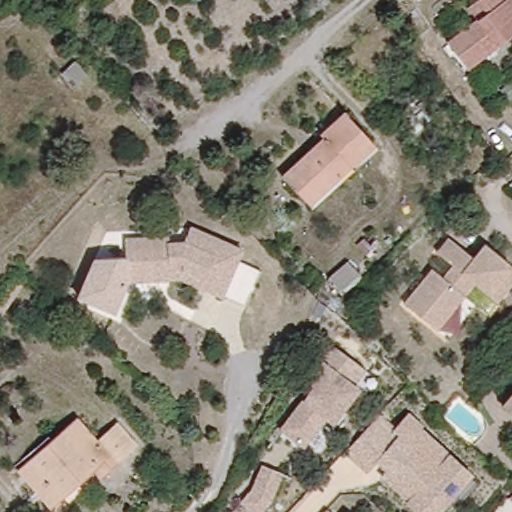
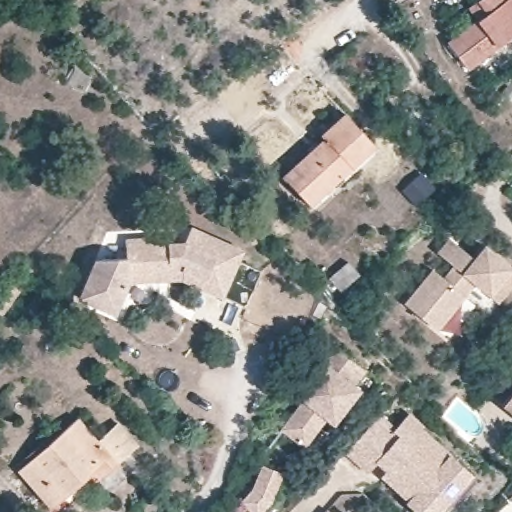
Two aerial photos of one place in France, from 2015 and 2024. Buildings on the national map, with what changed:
unchanged [(448,48),(478,24),(468,13),(484,0),(512,0),(512,41),(468,74),(448,48)]
unchanged [(73,88),(61,74),(76,61),(88,75),(73,88)]
unchanged [(309,205),(283,177),(324,138),(321,134),(344,113),(374,144),(309,205)]
unchanged [(181,279),(169,280),(126,282),(125,240),(169,238),(169,244),(183,243),(190,227),(242,250),(225,289),(221,297),(181,279)]
unchanged [(475,283),(437,330),(404,304),(432,269),(443,278),(453,266),(437,253),(449,238),(474,258),(484,245),(512,268),(512,284),(509,288),(498,302),(475,283)]
unchanged [(126,282),(115,314),(77,299),(93,259),(125,257),(126,282)]
unchanged [(340,291),(329,278),(348,262),(359,274),(340,291)]
unchanged [(0,314),(0,305),(18,279),(25,283),(3,315),(0,314)]
unchanged [(355,382),(361,388),(336,422),(328,418),(307,448),(280,431),(301,402),(294,397),(330,344),(366,368),(355,382)]
unchanged [(503,401),(512,389),(512,408),(503,401)]
unchanged [(380,475),(385,470),(377,462),(365,473),(346,453),(379,416),(393,429),(409,414),(449,454),(471,478),(438,512),(418,512),(380,475)]
unchanged [(105,474),(98,467),(51,507),(18,470),(77,418),(97,441),(116,424),(136,446),(105,474)]
unchanged [(253,489),(263,464),(282,473),(271,501),(261,512),(253,512),(241,502),(253,489)]
unchanged [(331,504),(339,512),(324,512),(331,504)]
unchanged [(354,510),(356,512),(352,512),(354,510)]

